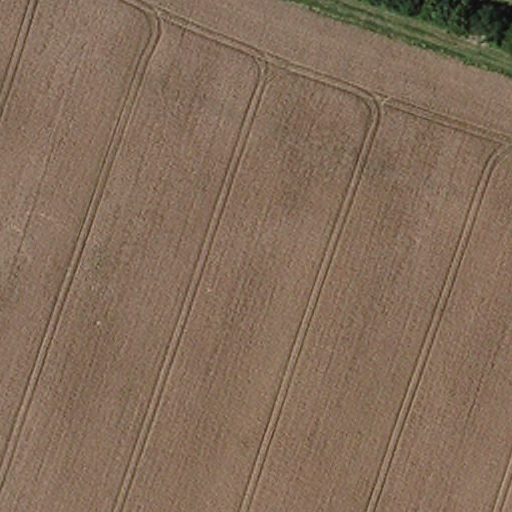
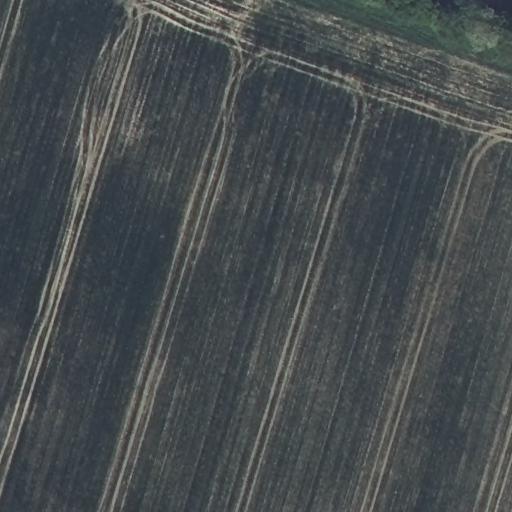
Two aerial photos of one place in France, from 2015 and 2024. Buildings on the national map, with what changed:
[]

